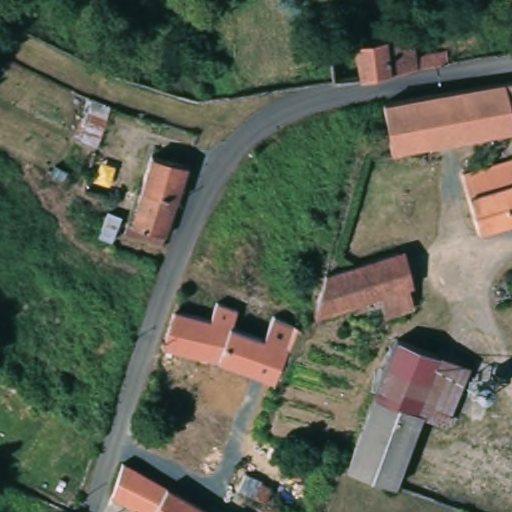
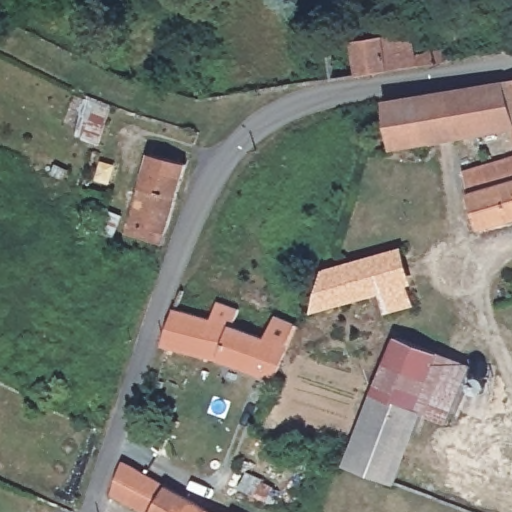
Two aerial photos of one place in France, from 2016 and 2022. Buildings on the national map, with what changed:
unchanged [(353,43),(408,35),(412,55),(427,52),(444,49),(446,63),(376,74),(357,77),(353,43)]
unchanged [(473,86),(512,80),(512,127),(391,148),(382,100),(385,100),(473,86)]
unchanged [(135,235),(149,187),(139,185),(149,149),(185,162),(168,219),(161,244),(135,235)]
unchanged [(460,172),(512,157),(512,218),(474,230),(460,172)]
unchanged [(400,246),(413,293),(384,301),(381,292),(353,300),(350,292),(312,303),(321,270),(400,246)]
unchanged [(165,327),(172,307),(201,316),(207,296),(227,305),(224,324),(288,344),(263,400),(254,395),(261,378),(215,360),(160,342),(165,327)]
unchanged [(392,338),(473,369),(451,424),(419,412),(371,391),(392,338)]
unchanged [(341,466),(371,391),(419,412),(391,485),(341,466)]
unchanged [(162,491),(150,512),(130,512),(109,497),(119,465),(162,491)]
unchanged [(150,512),(162,491),(197,512),(150,512)]

